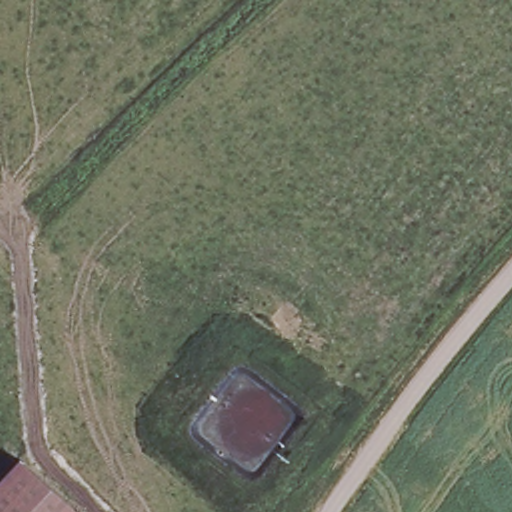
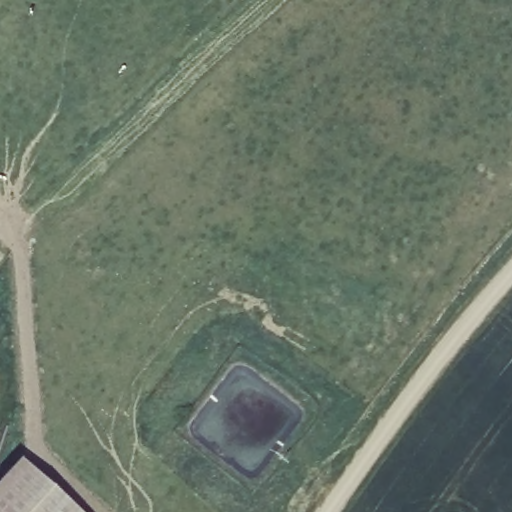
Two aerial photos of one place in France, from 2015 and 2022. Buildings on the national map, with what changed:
unchanged [(30,467),(76,512),(0,512),(0,499),(30,467)]

